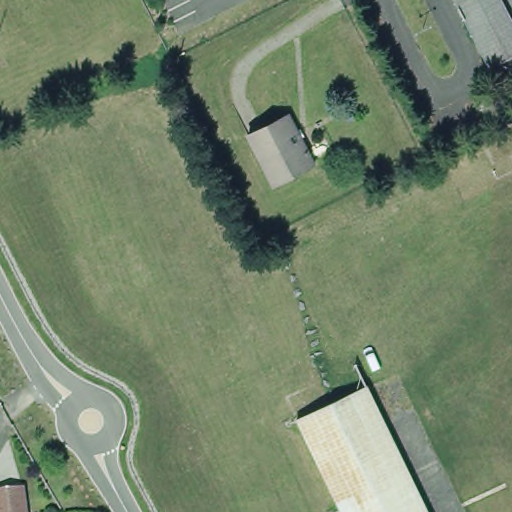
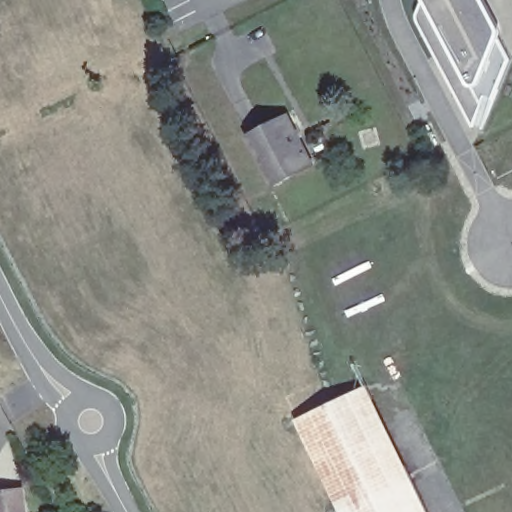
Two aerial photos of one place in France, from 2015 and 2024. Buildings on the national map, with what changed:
new [(512,35),(508,47),(512,53),(512,72),(483,131),(424,22),(424,15),(434,2),(433,0),(495,0),(509,26),(512,35)]
demolished [(483,68),(451,0),(512,0),(512,51),(483,68)]
unchanged [(296,110),(322,169),(266,194),(239,135),(296,110)]
unchanged [(295,422),(372,385),(434,512),(339,512),(295,422)]
unchanged [(17,490),(21,512),(0,512),(0,485),(16,482),(17,490)]

